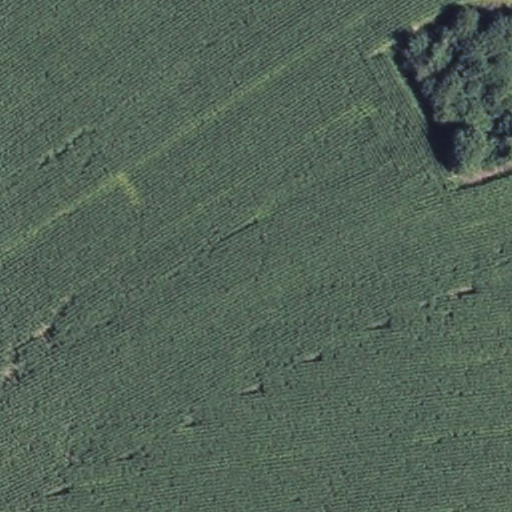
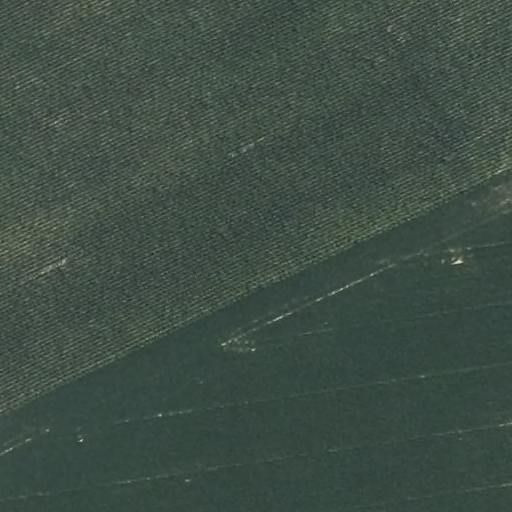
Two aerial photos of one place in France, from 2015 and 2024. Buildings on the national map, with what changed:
[]

